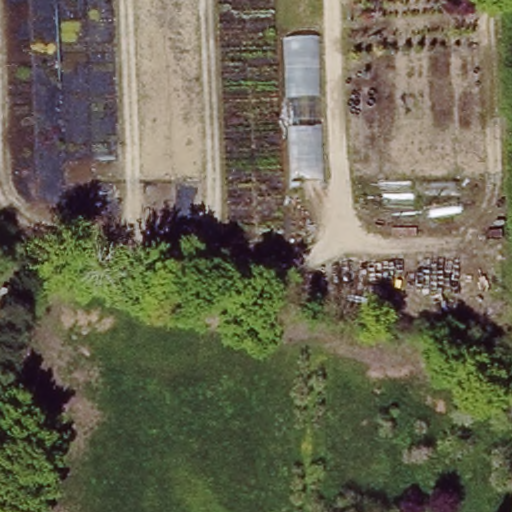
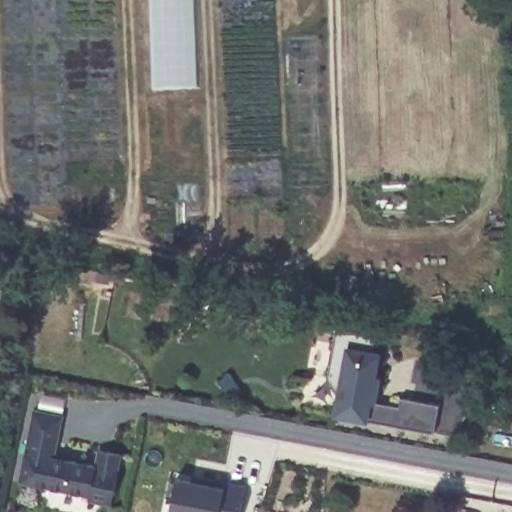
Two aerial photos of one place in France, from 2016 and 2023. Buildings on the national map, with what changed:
new [(432,435),(367,422),(331,415),(335,397),(326,396),(327,375),(336,328),(375,335),(372,350),(381,353),(375,377),(380,378),(375,402),(397,406),(400,396),(438,404),(432,435)]
new [(110,505),(90,501),(90,495),(17,481),(32,408),(62,415),(53,457),(95,465),(97,450),(121,455),(110,505)]
new [(169,512),(176,477),(203,483),(205,476),(244,485),(239,512),(169,512)]

